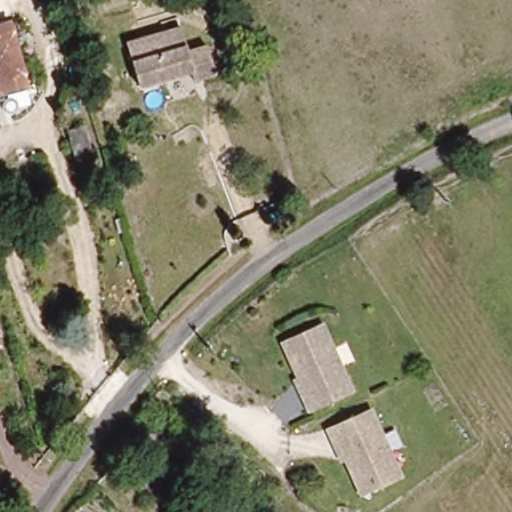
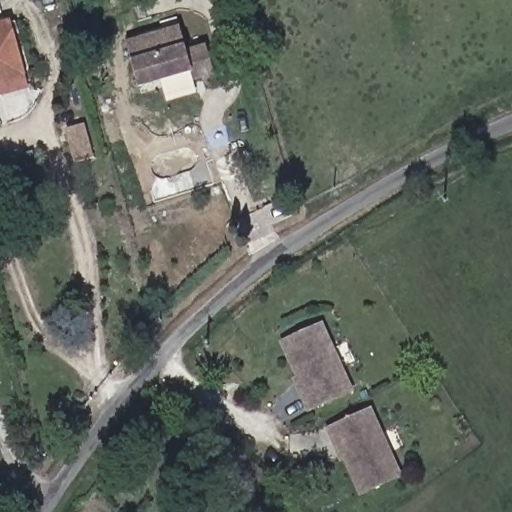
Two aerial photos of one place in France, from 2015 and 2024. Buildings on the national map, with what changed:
unchanged [(0,80),(0,28),(11,25),(22,77),(0,80)]
unchanged [(128,47),(177,32),(183,53),(207,47),(217,81),(195,88),(192,78),(142,93),(128,47)]
unchanged [(77,121),(87,155),(71,160),(61,126),(77,121)]
unchanged [(302,382),(306,380),(286,345),(324,324),(359,388),(321,409),(318,411),(302,382)]
unchanged [(410,474),(372,495),(353,460),(349,462),(333,433),(337,431),(374,410),(410,474)]

